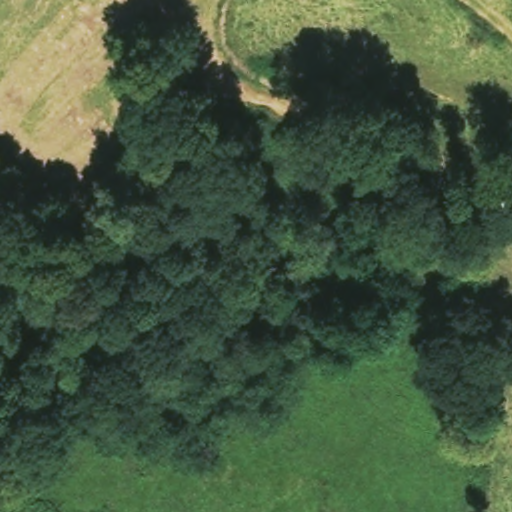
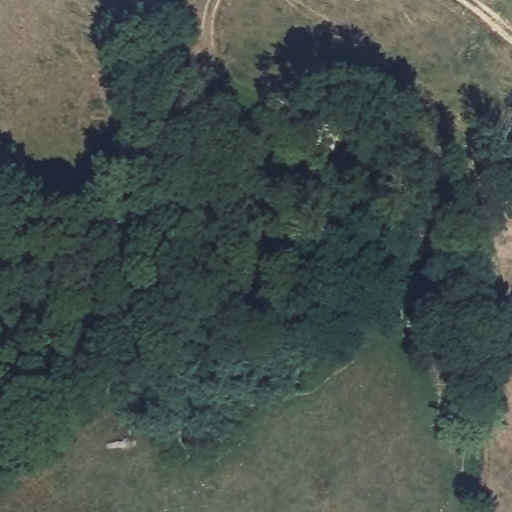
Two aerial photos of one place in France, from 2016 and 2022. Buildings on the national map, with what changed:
unchanged [(490,191),(488,184),(512,177),(512,200),(493,206),(490,191)]

